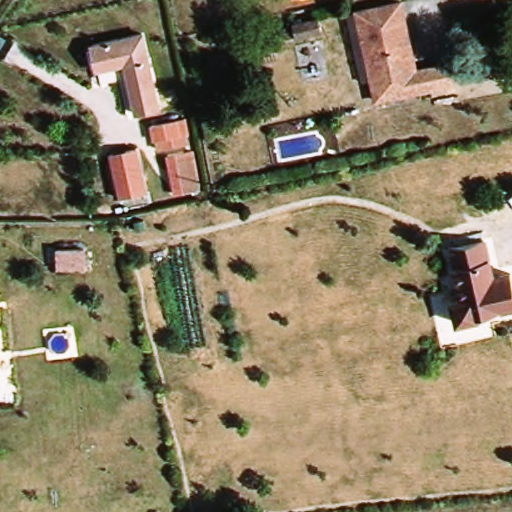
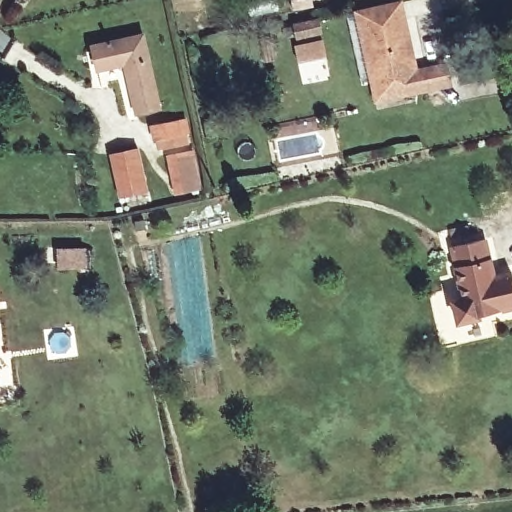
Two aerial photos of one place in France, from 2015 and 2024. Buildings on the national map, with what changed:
unchanged [(406,7),(417,71),(377,80),(367,82),(354,18),(365,16),(406,7)]
unchanged [(302,24),(301,21),(323,16),(326,32),(292,37),(289,25),(302,24)]
unchanged [(139,33),(157,105),(132,111),(122,67),(93,72),(86,46),(139,33)]
unchanged [(281,57),(272,59),(267,39),(278,37),(281,57)]
unchanged [(181,124),(186,140),(161,145),(158,130),(181,124)]
unchanged [(141,151),(149,194),(119,200),(111,157),(141,151)]
unchanged [(200,191),(179,194),(176,161),(195,157),(200,191)]
unchanged [(512,278),(512,314),(481,320),(482,325),(462,328),(457,308),(466,306),(455,252),(490,245),(497,281),(512,278)]
unchanged [(89,252),(90,271),(61,272),(62,252),(89,252)]
unchanged [(0,391),(0,368),(2,391),(0,391)]

